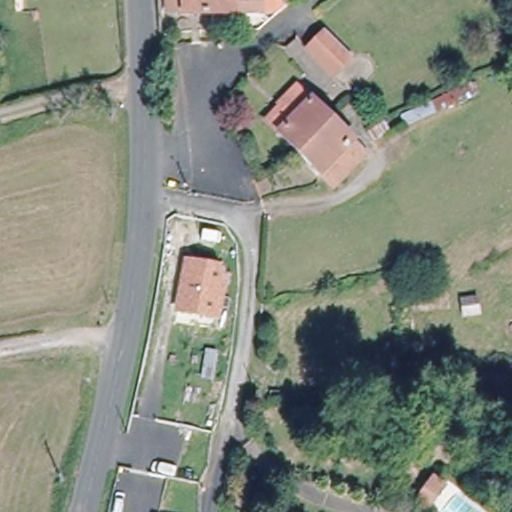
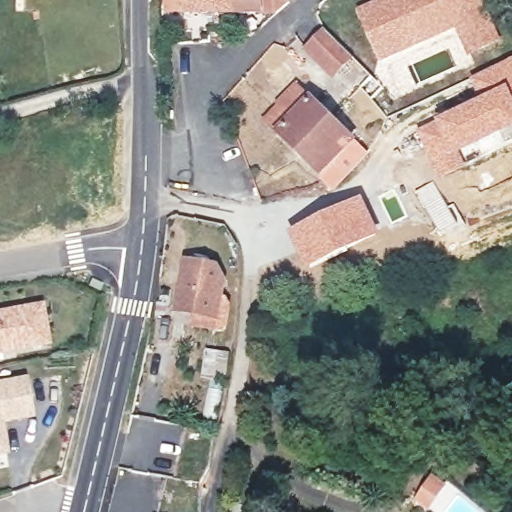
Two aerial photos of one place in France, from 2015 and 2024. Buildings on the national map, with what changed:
unchanged [(275,7),(261,7),(166,9),(166,0),(284,0),(275,7)]
new [(503,44),(470,56),(457,29),(383,60),(357,9),(378,0),(485,0),(503,44)]
unchanged [(328,75),(301,49),(308,41),(320,30),(347,55),(331,72),(328,75)]
new [(471,79),(512,58),(512,132),(465,155),(469,166),(441,180),(418,130),(480,100),(471,79)]
unchanged [(296,86),(353,144),(365,155),(331,187),(325,181),(276,131),(265,120),(279,107),(277,105),(296,86)]
new [(362,197),(381,236),(309,272),(290,232),(362,197)]
unchanged [(189,263),(220,270),(226,280),(218,320),(179,313),(189,263)]
new [(51,345),(0,354),(0,310),(44,301),(51,345)]
new [(27,375),(36,418),(7,425),(10,455),(0,456),(0,381),(27,375)]
demolished [(9,448),(0,450),(0,388),(9,448)]
unchanged [(449,484),(430,510),(415,498),(433,471),(449,484)]

